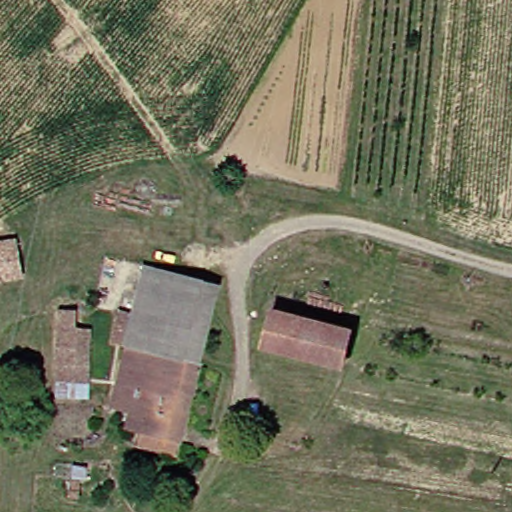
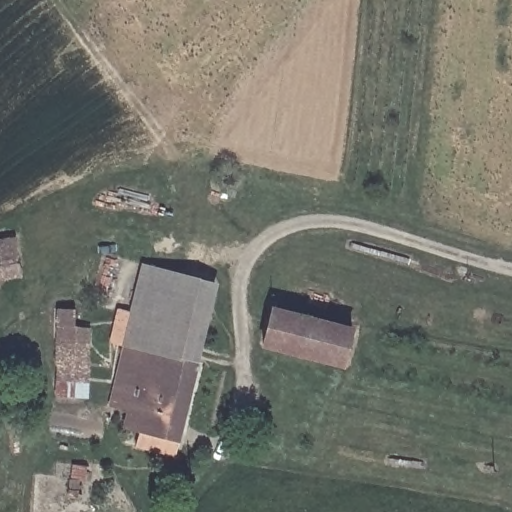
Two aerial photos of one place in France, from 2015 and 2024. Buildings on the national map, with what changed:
unchanged [(25,287),(0,291),(0,229),(17,227),(25,287)]
unchanged [(179,274),(218,282),(207,330),(169,321),(176,295),(173,295),(179,274)]
unchanged [(142,429),(129,427),(132,408),(115,404),(123,366),(128,345),(117,342),(126,302),(137,305),(141,287),(173,295),(176,295),(169,321),(207,330),(182,437),(179,452),(140,444),(142,429)]
unchanged [(268,341),(278,307),(354,329),(345,363),(268,341)]
unchanged [(74,400),(60,400),(62,313),(77,314),(77,331),(74,400)]
unchanged [(91,332),(90,401),(74,400),(77,331),(91,332)]

